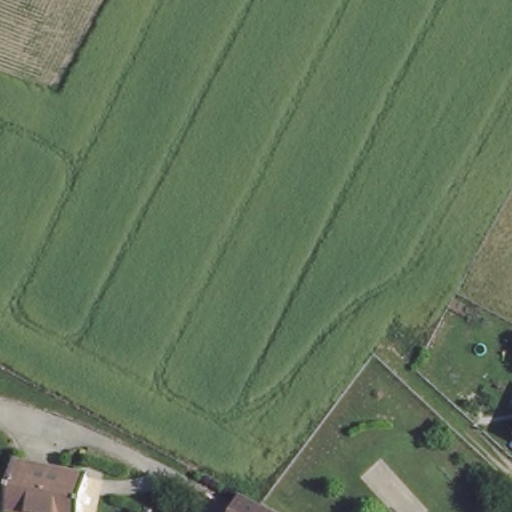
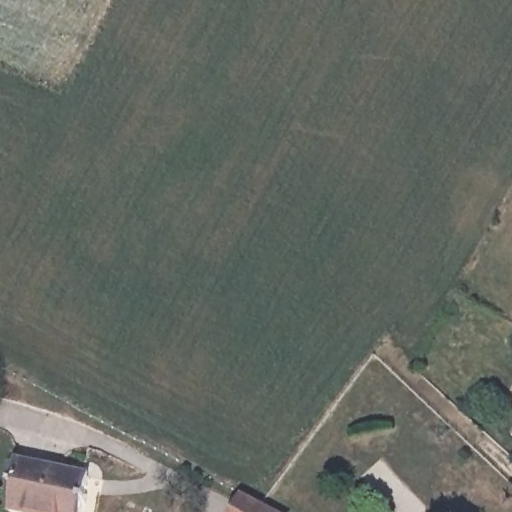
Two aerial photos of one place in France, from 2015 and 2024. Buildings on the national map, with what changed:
unchanged [(24,459),(89,471),(81,512),(61,512),(10,501),(15,480),(19,458),(24,459)]
unchanged [(269,512),(238,512),(245,500),(260,507),(269,512)]

